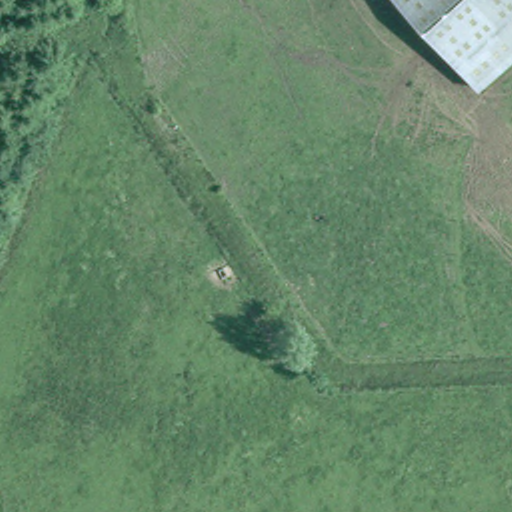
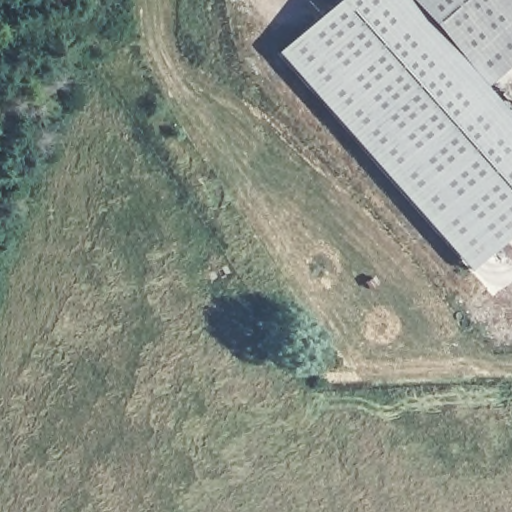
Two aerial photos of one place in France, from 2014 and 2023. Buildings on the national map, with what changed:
new [(273,51),(330,0),(407,0),(481,82),(512,119),(512,229),(468,269),(273,51)]
unchanged [(407,0),(512,0),(512,55),(481,82),(407,0)]

